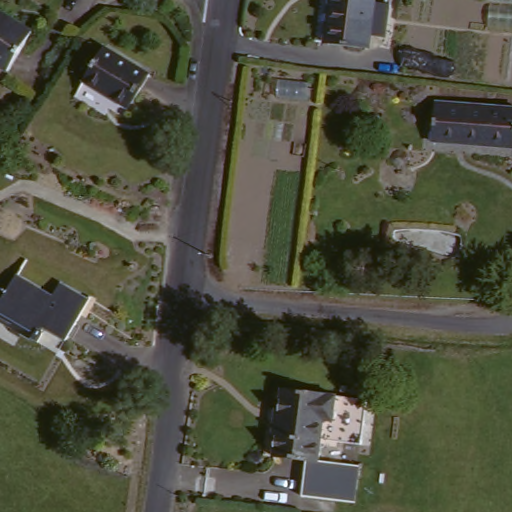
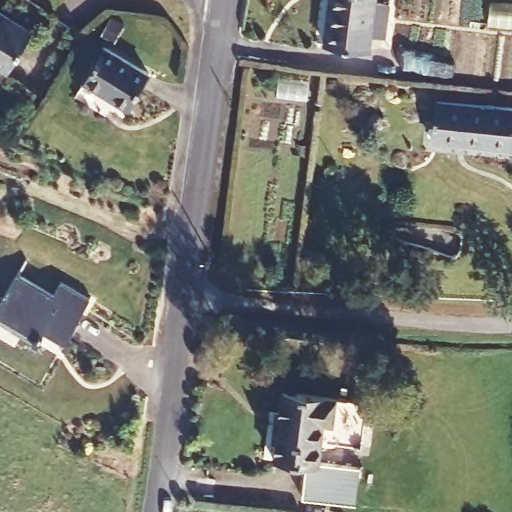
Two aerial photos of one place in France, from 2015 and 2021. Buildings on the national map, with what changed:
unchanged [(329,43),(335,0),(379,0),(372,49),(329,43)]
unchanged [(12,69),(0,62),(0,14),(33,32),(12,69)]
unchanged [(148,73),(130,104),(84,78),(103,45),(148,73)]
unchanged [(458,59),(455,78),(403,69),(406,48),(458,59)]
unchanged [(512,108),(512,149),(438,143),(440,100),(512,108)]
unchanged [(60,287),(90,303),(68,344),(44,332),(36,343),(23,335),(19,340),(0,329),(0,305),(16,279),(53,299),(60,287)]
unchanged [(338,392),(335,419),(324,418),(318,456),(273,451),(283,385),(338,392)]
unchanged [(308,459),(364,467),(359,504),(305,494),(308,459)]

